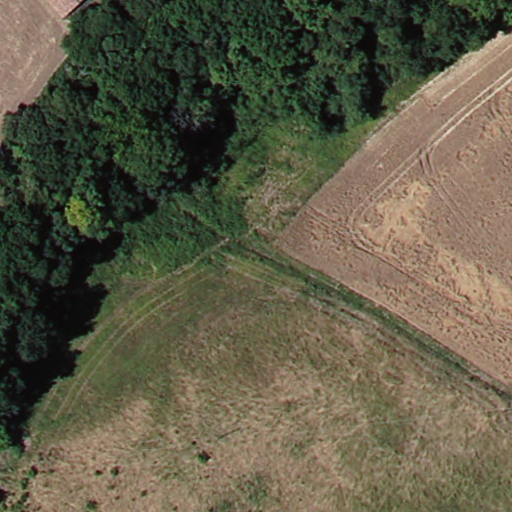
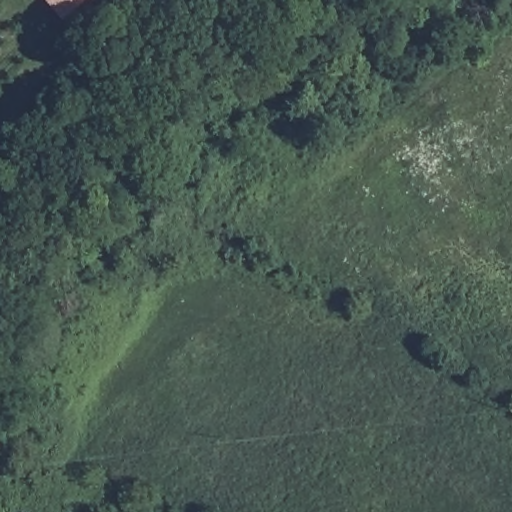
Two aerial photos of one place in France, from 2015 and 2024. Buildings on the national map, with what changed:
unchanged [(67,12),(56,0),(79,0),(67,12)]

